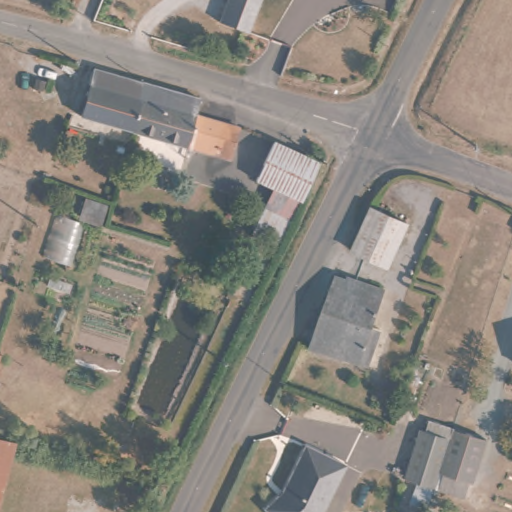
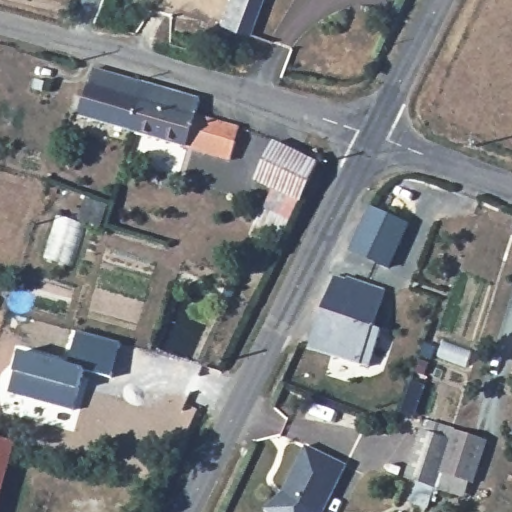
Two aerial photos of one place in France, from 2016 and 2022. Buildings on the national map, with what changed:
unchanged [(216,20),(224,0),(258,0),(246,31),(216,20)]
unchanged [(205,108),(199,124),(242,135),(230,167),(81,117),(96,72),(205,108)]
unchanged [(312,157),(297,189),(259,171),(274,140),(312,157)]
unchanged [(406,222),(397,245),(388,265),(353,250),(371,207),(406,222)]
unchanged [(354,285),(357,278),(384,288),(370,326),(378,329),(363,370),(303,348),(334,270),(344,274),(342,280),(354,285)]
new [(121,341),(111,377),(85,369),(78,389),(73,410),(10,393),(14,373),(20,351),(69,364),(76,331),(121,341)]
unchanged [(436,479),(408,470),(422,425),(423,422),(451,431),(450,437),(439,472),(436,479)]
unchanged [(486,439),(472,482),(439,472),(450,437),(451,431),(452,428),(486,439)]
unchanged [(0,512),(0,439),(19,444),(0,512)]
unchanged [(343,467),(320,512),(264,512),(262,509),(280,492),(304,446),(343,467)]

